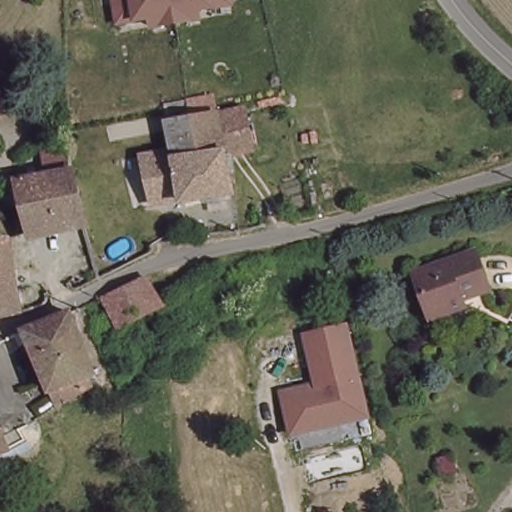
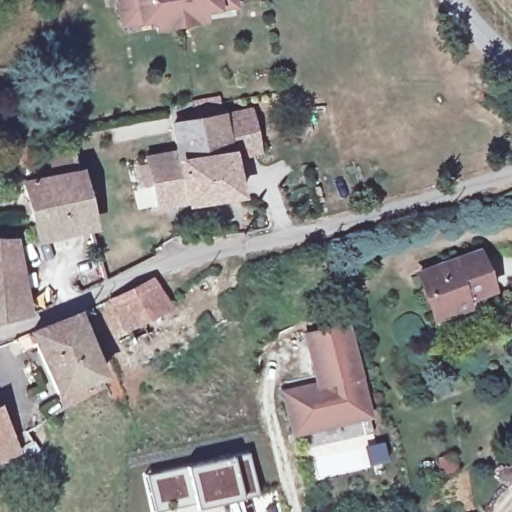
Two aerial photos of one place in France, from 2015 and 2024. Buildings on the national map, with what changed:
unchanged [(183,8),(185,17),(167,20),(166,10),(118,16),(116,0),(230,0),(231,2),(183,8)]
unchanged [(223,120),(250,118),(254,150),(227,154),(230,195),(187,200),(185,195),(176,150),(173,127),(223,120)]
unchanged [(87,221),(33,234),(25,185),(53,180),(47,151),(73,145),(87,221)]
unchanged [(185,195),(154,201),(148,156),(176,150),(185,195)]
unchanged [(25,313),(0,319),(0,241),(25,313)]
unchanged [(478,260),(487,296),(465,301),(467,313),(431,321),(420,271),(478,260)]
unchanged [(123,338),(105,304),(151,280),(172,310),(123,338)]
unchanged [(235,315),(220,320),(216,307),(221,305),(217,290),(228,288),(235,315)]
unchanged [(96,385),(63,409),(26,333),(79,316),(96,385)]
unchanged [(292,440),(279,391),(315,382),(304,333),(352,322),(374,419),(292,440)]
unchanged [(9,452),(0,456),(0,430),(4,438),(24,430),(28,442),(9,452)]
new [(238,497),(193,508),(192,502),(153,511),(145,475),(186,466),(229,457),(245,454),(254,494),(238,497)]

